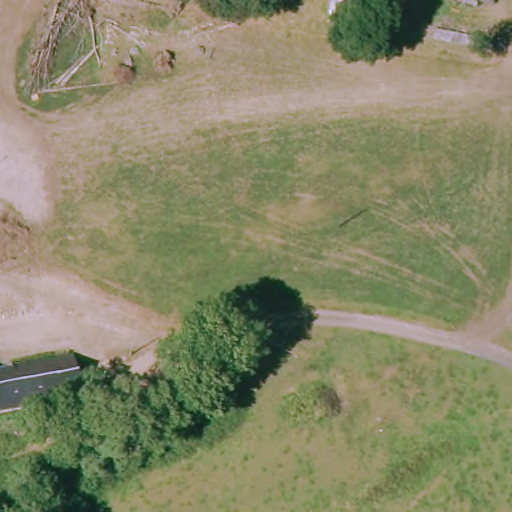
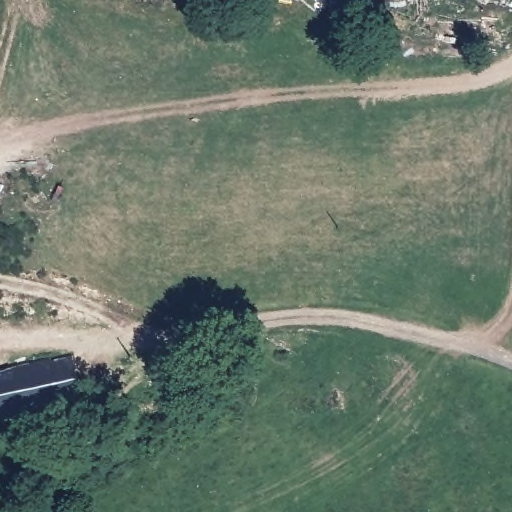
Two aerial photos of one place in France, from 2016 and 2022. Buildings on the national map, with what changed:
unchanged [(91,401),(0,419),(0,357),(2,357),(3,368),(56,358),(58,362),(83,357),(91,401)]

